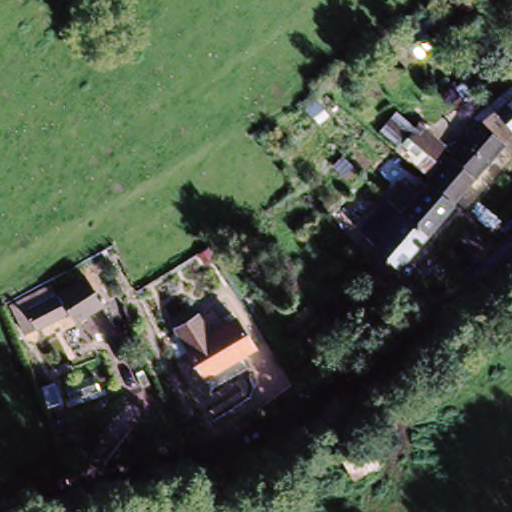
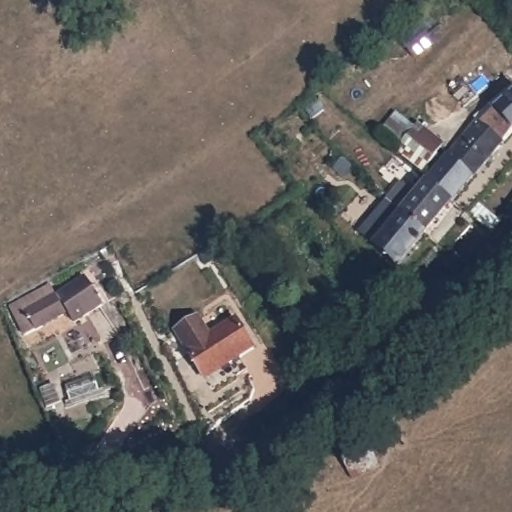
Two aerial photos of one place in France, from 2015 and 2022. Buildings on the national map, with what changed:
unchanged [(508,129),(498,140),(477,122),(512,92),(512,125),(508,129)]
unchanged [(447,201),(423,181),(460,139),(475,120),(477,122),(498,140),(447,201)]
unchanged [(415,123),(440,143),(420,168),(395,149),(415,123)]
unchanged [(421,232),(383,199),(394,187),(408,198),(410,197),(423,181),(447,201),(421,232)]
unchanged [(392,265),(368,245),(370,242),(357,230),(383,199),(421,232),(392,265)]
unchanged [(487,212),(499,224),(490,235),(476,222),(487,212)]
unchanged [(465,224),(485,242),(463,266),(447,244),(465,224)]
unchanged [(460,277),(440,292),(425,272),(444,256),(460,277)]
unchanged [(102,305),(75,326),(66,315),(20,336),(7,303),(47,283),(54,295),(80,277),(102,305)]
unchanged [(350,287),(365,305),(300,358),(285,340),(350,287)]
unchanged [(197,318),(208,337),(235,321),(252,346),(202,377),(190,356),(193,353),(179,330),(197,318)]
unchanged [(338,460),(365,447),(377,467),(350,482),(338,460)]

